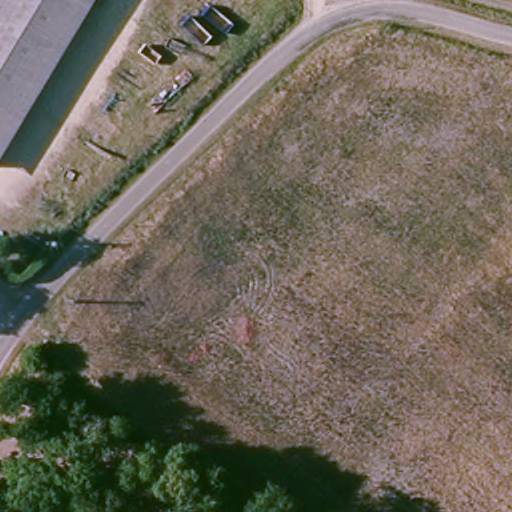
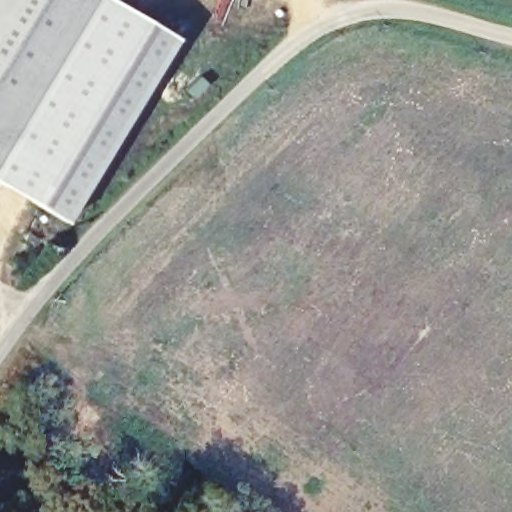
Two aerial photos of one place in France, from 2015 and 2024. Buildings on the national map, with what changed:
unchanged [(0,144),(0,0),(86,0),(0,144)]
new [(172,33),(62,216),(0,180),(0,144),(86,0),(115,0),(172,33)]

